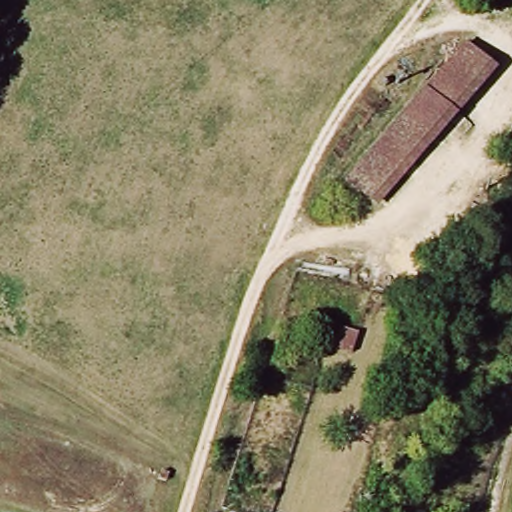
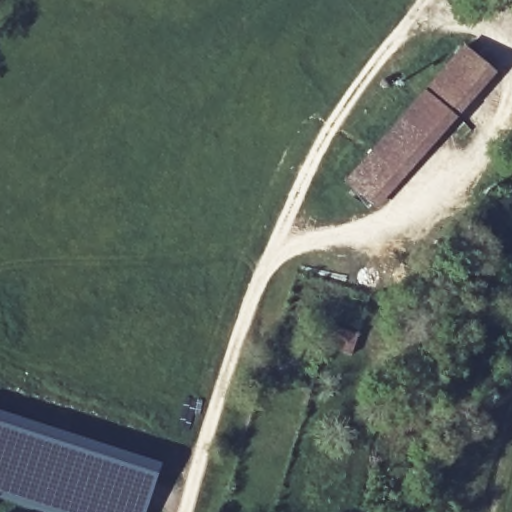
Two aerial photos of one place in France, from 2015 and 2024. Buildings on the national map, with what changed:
unchanged [(371,212),(340,183),(448,66),(464,50),(497,80),(437,141),(371,212)]
new [(146,512),(46,512),(0,496),(0,412),(162,464),(146,512)]

